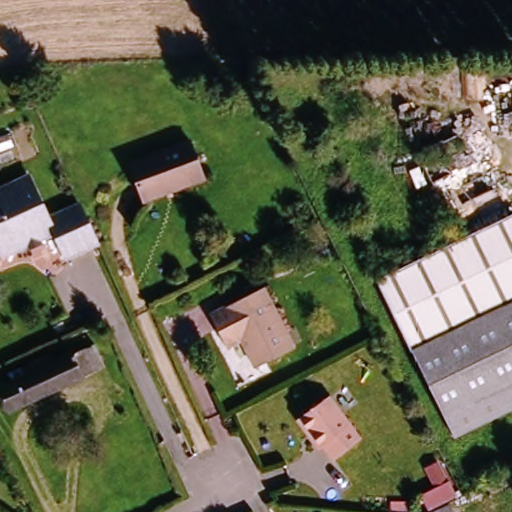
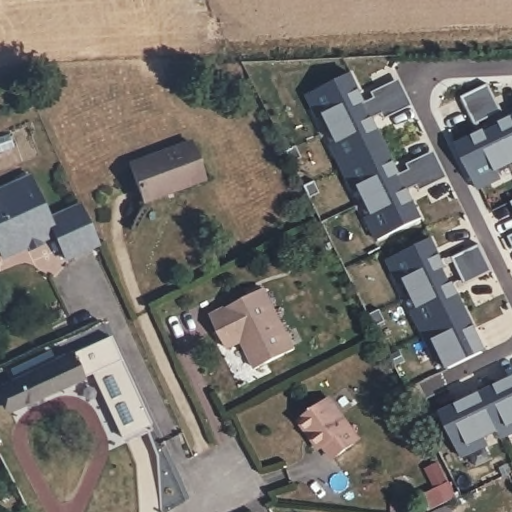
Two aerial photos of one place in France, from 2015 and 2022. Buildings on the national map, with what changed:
new [(420,190),(418,184),(410,188),(424,216),(377,240),(367,217),(373,215),(360,185),(352,190),(332,145),(338,142),(325,114),(317,117),(308,95),(353,72),(367,102),(375,97),(372,91),(400,79),(412,105),(384,118),(382,112),(374,117),(402,174),(410,170),(407,164),(433,150),(447,176),(420,190)]
new [(501,179),(478,189),(457,143),(480,131),(461,96),(487,84),(507,119),(512,116),(512,163),(497,170),(501,179)]
unchanged [(188,143),(201,180),(142,201),(128,165),(188,143)]
unchanged [(32,251),(30,246),(3,258),(0,251),(0,191),(32,176),(51,220),(57,235),(43,241),(45,245),(32,251)]
new [(512,201),(512,203),(511,201),(512,201)]
unchanged [(101,246),(68,260),(57,235),(51,220),(83,207),(101,246)]
demolished [(377,280),(512,214),(512,402),(452,431),(377,280)]
new [(512,235),(512,240),(510,236),(512,235)]
new [(447,367),(440,353),(434,357),(412,311),(419,308),(404,278),(398,282),(387,261),(434,237),(442,254),(487,349),(447,367)]
unchanged [(263,285),(294,345),(257,365),(242,337),(228,345),(211,311),(263,285)]
unchanged [(106,366),(10,410),(0,387),(15,380),(10,372),(50,352),(55,361),(95,342),(106,366)]
new [(498,431),(485,437),(490,446),(462,458),(440,412),(512,377),(512,435),(501,440),(498,431)]
unchanged [(330,401),(357,442),(332,460),(322,446),(318,450),(299,421),(330,401)]
unchanged [(449,506),(452,512),(436,512),(449,506)]

